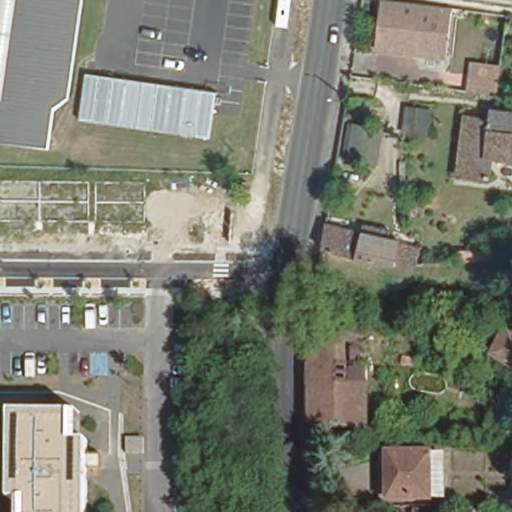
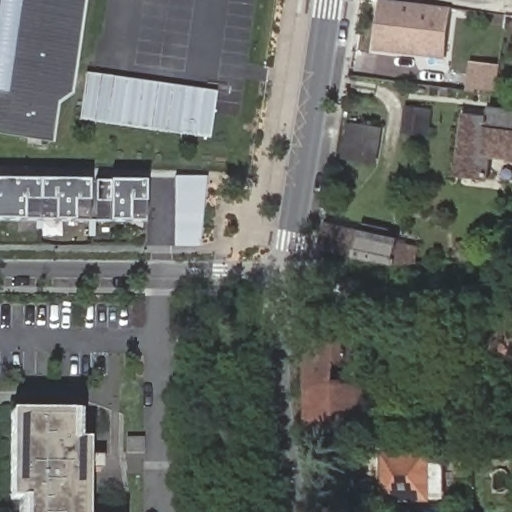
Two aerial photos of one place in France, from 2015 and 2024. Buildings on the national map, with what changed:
unchanged [(62,91),(47,103),(42,139),(0,133),(0,0),(75,0),(62,91)]
unchanged [(444,62),(371,51),(378,0),(397,0),(450,7),(444,62)]
unchanged [(466,87),(468,60),(501,64),(497,92),(466,87)]
unchanged [(208,138),(77,117),(85,71),(215,90),(208,138)]
new [(405,107),(432,110),(430,137),(402,134),(405,107)]
unchanged [(506,161),(507,155),(490,152),(487,173),(459,169),(466,114),(491,117),(492,108),(512,111),(512,162),(506,161)]
new [(385,129),(379,165),(342,160),(349,124),(385,129)]
new [(199,247),(174,247),(173,177),(206,177),(199,247)]
new [(0,180),(145,182),(144,223),(0,221),(0,180)]
unchanged [(319,248),(322,226),(357,234),(359,227),(383,233),(382,238),(391,240),(400,242),(411,244),(408,261),(397,261),(387,262),(319,248)]
unchanged [(485,353),(500,323),(503,324),(506,318),(512,319),(512,368),(485,353)]
unchanged [(368,325),(366,426),(312,425),(315,323),(368,325)]
unchanged [(10,504),(10,480),(10,419),(70,418),(80,418),(79,446),(87,447),(87,512),(19,512),(19,504),(10,504)]
unchanged [(427,448),(427,494),(384,495),(383,448),(427,448)]
unchanged [(413,512),(413,498),(445,497),(446,512),(413,512)]

